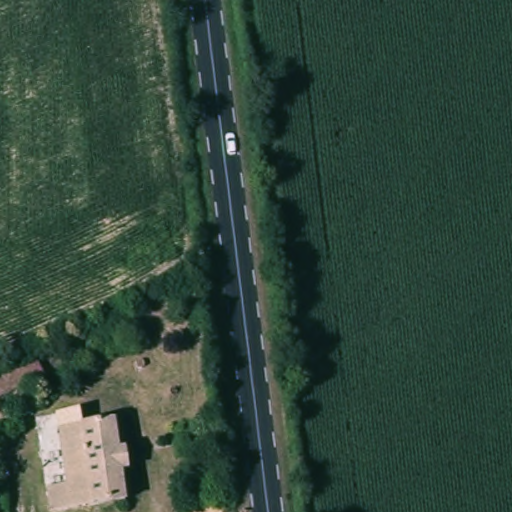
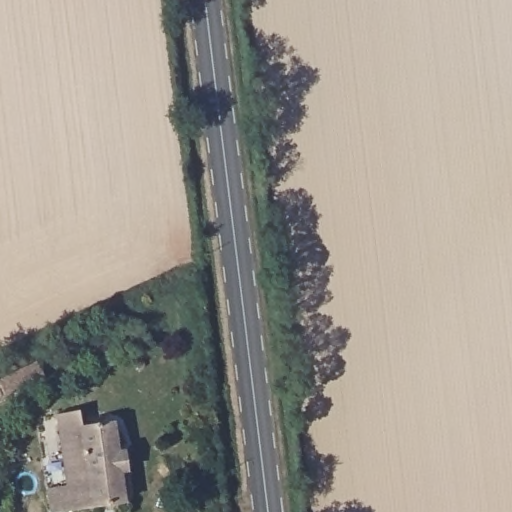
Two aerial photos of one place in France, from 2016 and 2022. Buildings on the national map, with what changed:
unchanged [(7,365),(16,381),(0,389),(0,368),(7,365)]
unchanged [(109,417),(111,437),(118,437),(122,469),(115,470),(118,500),(51,507),(47,480),(62,478),(56,423),(109,417)]

